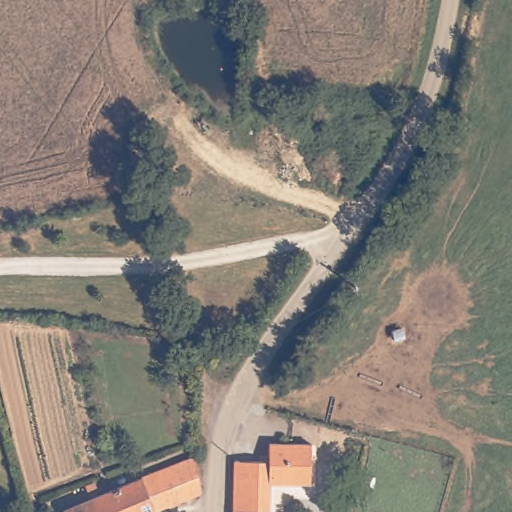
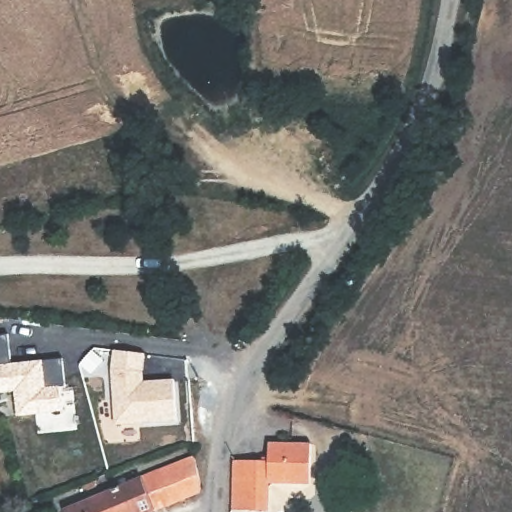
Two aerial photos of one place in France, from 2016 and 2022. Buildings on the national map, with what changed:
new [(60,386),(66,410),(17,415),(15,391),(0,393),(0,336),(8,335),(11,362),(62,358),(65,386),(60,386)]
new [(144,371),(145,380),(169,378),(176,381),(176,420),(116,423),(112,371),(114,349),(146,353),(144,371)]
unchanged [(271,453),(272,436),(311,439),(310,475),(271,473),(269,512),(234,512),(234,510),(236,451),(271,453)]
unchanged [(80,497),(140,472),(195,450),(197,483),(196,487),(138,512),(67,512),(64,503),(80,497)]

